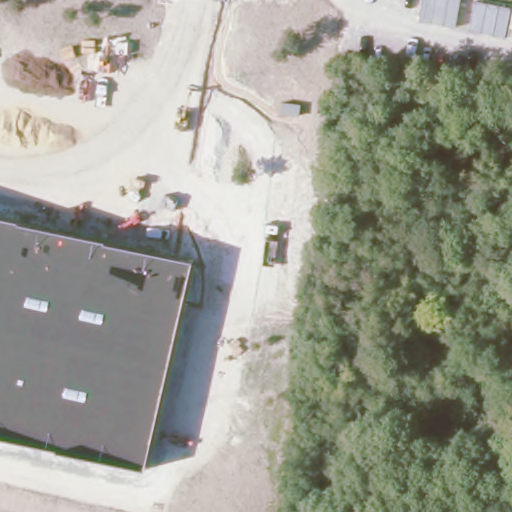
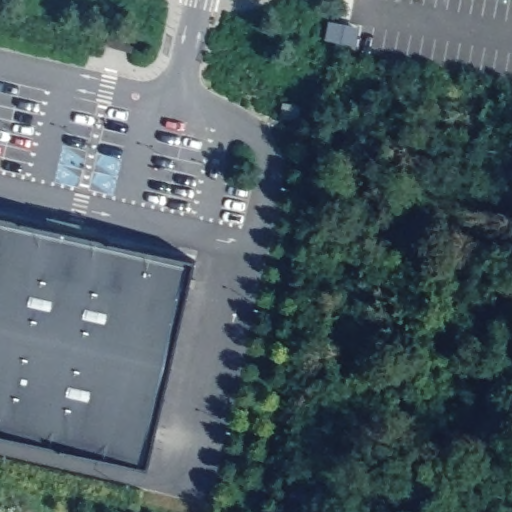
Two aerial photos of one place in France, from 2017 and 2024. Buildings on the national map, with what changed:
unchanged [(148,471),(0,435),(0,216),(196,259),(148,471)]

